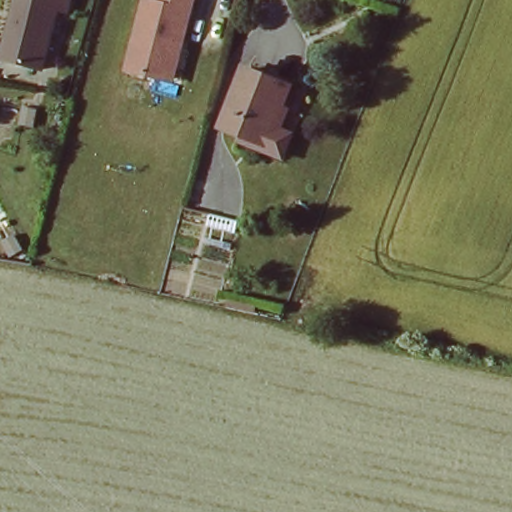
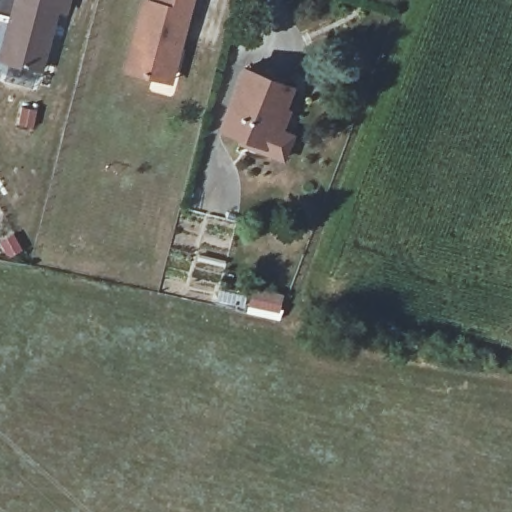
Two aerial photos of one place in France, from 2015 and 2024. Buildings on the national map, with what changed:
unchanged [(15,0),(55,0),(39,61),(0,52),(15,0)]
unchanged [(122,64),(139,0),(187,0),(172,56),(167,75),(161,74),(122,64)]
unchanged [(267,149),(220,130),(243,69),(290,87),(267,149)]

